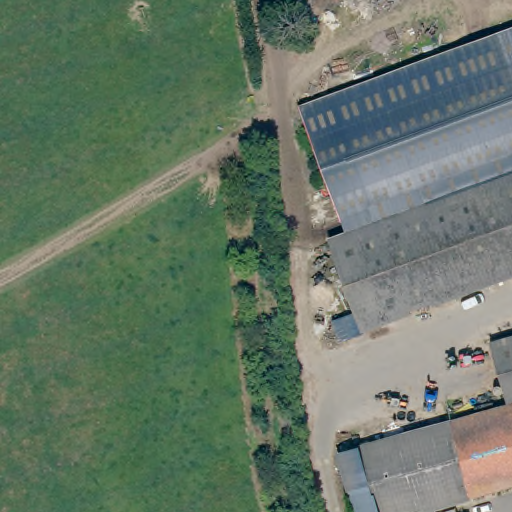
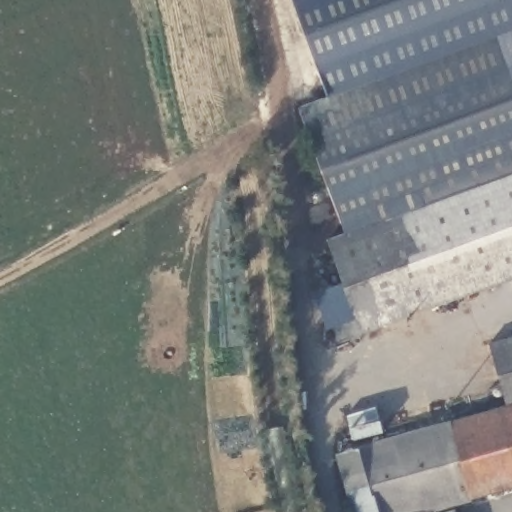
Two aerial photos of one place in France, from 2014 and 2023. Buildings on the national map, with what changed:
new [(331,96),(295,0),(512,0),(512,30),(492,37),(331,96)]
unchanged [(512,30),(512,89),(492,37),(512,30)]
unchanged [(345,233),(300,108),(492,37),(512,89),(512,172),(345,233)]
unchanged [(362,332),(328,240),(345,233),(512,172),(512,277),(362,332)]
unchanged [(495,342),(512,338),(512,404),(495,342)]
unchanged [(382,512),(380,506),(363,447),(512,404),(512,488),(428,512),(382,512)]
unchanged [(380,506),(361,512),(343,453),(363,447),(380,506)]

